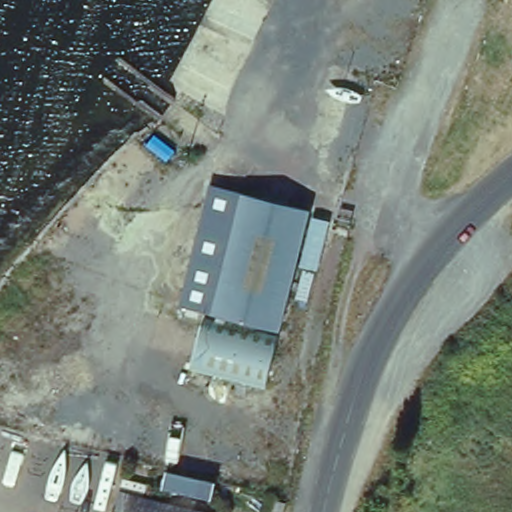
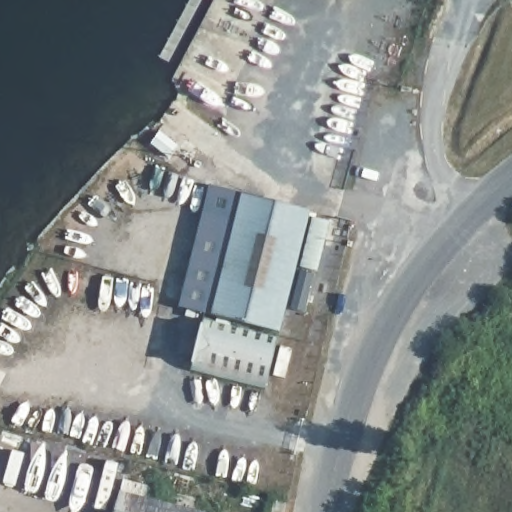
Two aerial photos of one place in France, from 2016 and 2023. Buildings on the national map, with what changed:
unchanged [(210,185),(335,217),(321,270),(310,313),(290,307),(280,331),(180,307),(210,185)]
unchanged [(280,331),(265,383),(192,367),(207,313),(280,331)]
unchanged [(184,512),(114,512),(118,496),(184,512)]

